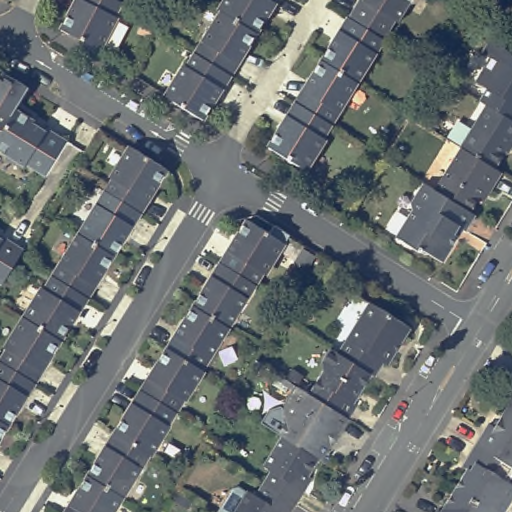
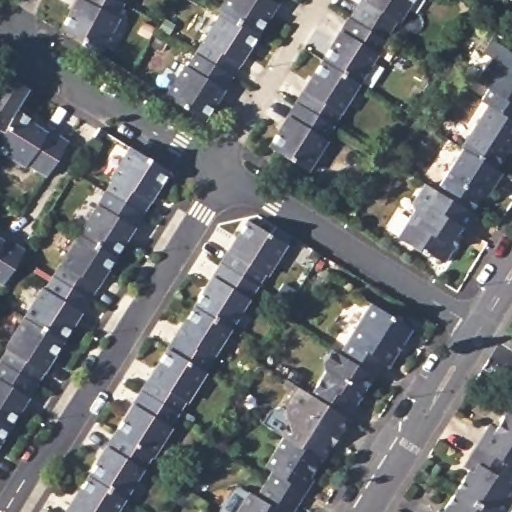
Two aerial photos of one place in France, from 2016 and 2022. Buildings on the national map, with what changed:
unchanged [(84,41),(61,30),(70,12),(72,13),(79,0),(114,0),(121,4),(114,16),(117,18),(97,55),(82,45),(84,41)]
unchanged [(123,0),(121,4),(114,0),(123,0)]
unchanged [(272,7),(261,24),(226,2),(224,0),(273,0),(269,6),(272,7)]
unchanged [(361,0),(364,0),(413,0),(399,22),(397,21),(384,41),(382,40),(348,20),(361,0)]
unchanged [(251,40),(249,39),(232,65),(200,45),(226,2),(261,24),(251,40)]
unchanged [(320,60),(330,45),(332,46),(348,20),(382,40),(356,82),(320,60)]
unchanged [(480,100),(487,88),(476,81),(491,58),(482,52),(490,40),(504,47),(512,55),(512,121),(487,105),(480,100)]
unchanged [(216,91),(218,93),(207,110),(170,87),(189,56),(192,57),(200,45),(232,65),(216,91)]
unchanged [(297,105),(313,79),(310,77),(320,60),(356,82),(330,125),(297,105)]
unchanged [(67,136),(45,172),(26,160),(24,162),(0,147),(0,106),(11,112),(16,105),(34,116),(32,119),(45,126),(47,124),(67,136)]
unchanged [(268,147),(278,130),(281,132),(297,105),(330,125),(322,138),(325,140),(306,170),(268,147)]
unchanged [(460,148),(487,105),(512,121),(512,141),(494,170),(461,149),(460,148)]
unchanged [(105,192),(112,180),(110,178),(130,147),(167,171),(157,188),(154,186),(137,212),(105,192)]
unchanged [(478,197),(469,212),(436,191),(461,149),(494,170),(501,174),(490,191),(484,200),(478,197)]
unchanged [(427,252),(427,251),(423,248),(421,252),(396,237),(413,210),(412,204),(423,184),(436,191),(469,212),(475,215),(465,231),(458,227),(455,233),(459,235),(442,262),(427,252)]
unchanged [(79,235),(105,192),(137,212),(121,239),(124,240),(114,257),(79,235)]
unchanged [(222,260),(239,234),(236,232),(247,216),(269,230),(275,221),(290,230),(266,270),(263,268),(255,281),(222,260)]
unchanged [(23,245),(19,252),(2,280),(0,279),(0,234),(1,235),(2,232),(23,245)]
unchanged [(52,277),(79,235),(114,257),(104,273),(101,271),(85,298),(52,277)]
unchanged [(193,301),(204,285),(206,286),(222,260),(255,281),(229,323),(193,301)]
unchanged [(24,319),(42,289),(44,290),(52,277),(85,298),(69,322),(72,324),(61,342),(24,319)]
unchanged [(338,350),(370,298),(410,322),(387,360),(383,357),(375,372),(372,370),(338,350)]
unchanged [(170,345),(186,319),(184,317),(193,301),(229,323),(202,366),(170,345)]
unchanged [(0,363),(0,361),(7,350),(6,348),(24,319),(61,342),(50,360),(47,358),(32,383),(0,363)]
unchanged [(143,388),(159,363),(156,361),(167,344),(170,345),(202,366),(204,367),(186,396),(184,395),(176,408),(143,388)]
unchanged [(308,390),(325,366),(322,358),(331,345),(338,350),(372,370),(353,397),(357,400),(348,414),(308,390)]
unchanged [(0,422),(0,363),(32,383),(16,409),(18,410),(8,427),(0,422)]
unchanged [(282,432),(259,417),(267,406),(280,402),(282,403),(296,382),(308,390),(348,414),(340,428),(337,427),(320,455),(318,455),(282,432)]
unchanged [(149,451),(117,430),(114,429),(125,411),(127,412),(143,388),(176,408),(168,421),(170,422),(151,452),(149,451)]
unchanged [(512,406),(512,414),(508,412),(512,406)]
unchanged [(489,430),(495,433),(508,412),(512,414),(512,473),(476,451),(489,430)]
unchanged [(8,427),(0,440),(0,422),(8,427)]
unchanged [(87,471),(97,455),(100,457),(117,430),(149,451),(123,493),(87,471)]
unchanged [(264,480),(272,467),(263,462),(282,432),(318,455),(301,483),(304,485),(296,499),(264,480)]
unchanged [(467,475),(463,472),(476,451),(512,473),(512,480),(507,487),(512,490),(512,505),(508,512),(480,512),(455,496),(467,475)]
unchanged [(80,490),(77,487),(87,471),(123,493),(111,512),(66,512),(80,490)]
unchanged [(217,509),(232,485),(239,481),(248,487),(249,487),(257,492),(264,480),(296,499),(288,512),(285,512),(283,511),(283,512),(222,512),(217,509)]
unchanged [(455,496),(480,512),(445,512),(455,496)]

